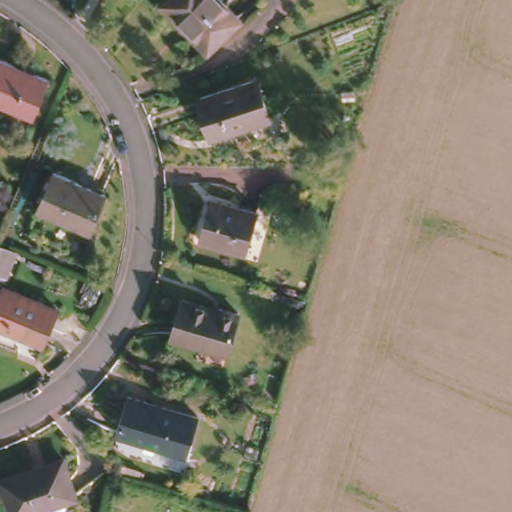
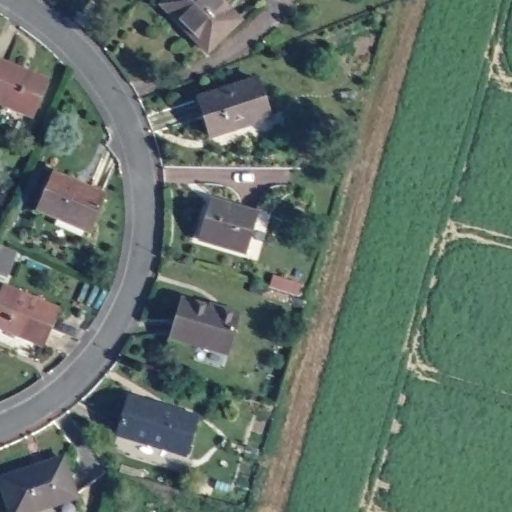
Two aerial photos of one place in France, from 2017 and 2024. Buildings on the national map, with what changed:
unchanged [(240,19),(206,51),(187,31),(188,30),(163,3),(167,0),(221,0),(240,19)]
unchanged [(33,118),(0,105),(0,61),(48,81),(33,118)]
unchanged [(210,136),(197,98),(257,79),(268,117),(268,118),(210,136)]
unchanged [(37,210),(52,173),(104,194),(89,232),(37,210)]
unchanged [(208,195),(257,209),(245,248),(197,234),(208,195)]
unchanged [(56,311),(42,345),(0,328),(0,294),(2,288),(56,311)]
unchanged [(207,307),(208,304),(218,308),(238,313),(225,353),(170,337),(181,299),(207,307)]
unchanged [(125,396),(198,417),(186,456),(115,434),(125,396)]
unchanged [(62,459),(74,497),(29,512),(11,512),(0,479),(62,459)]

